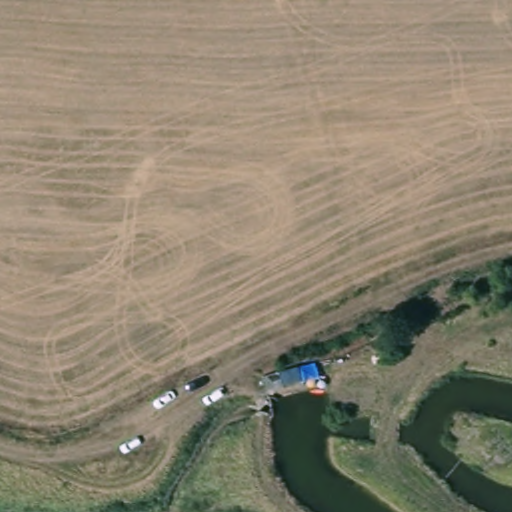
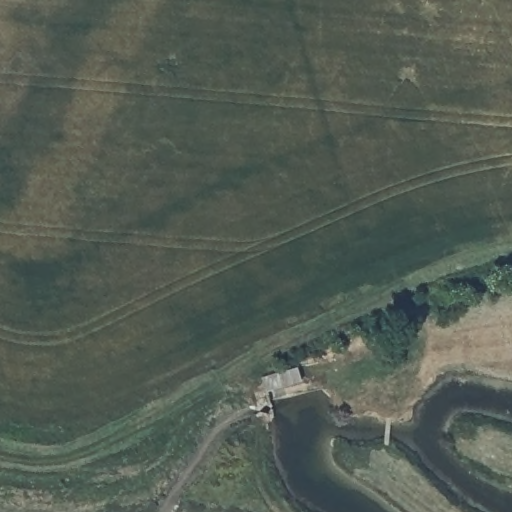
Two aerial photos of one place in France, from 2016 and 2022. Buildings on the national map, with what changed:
unchanged [(261,379),(297,364),(302,382),(266,394),(261,379)]

